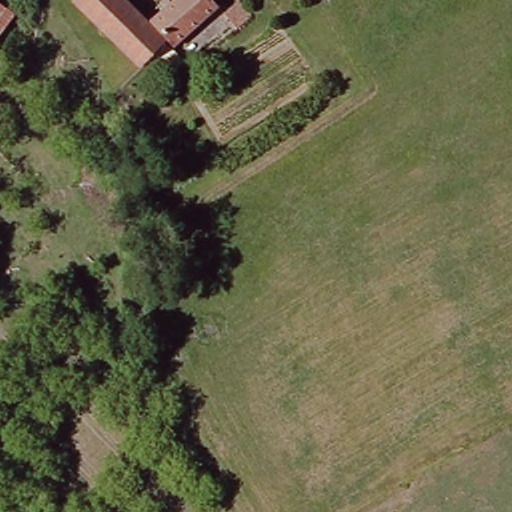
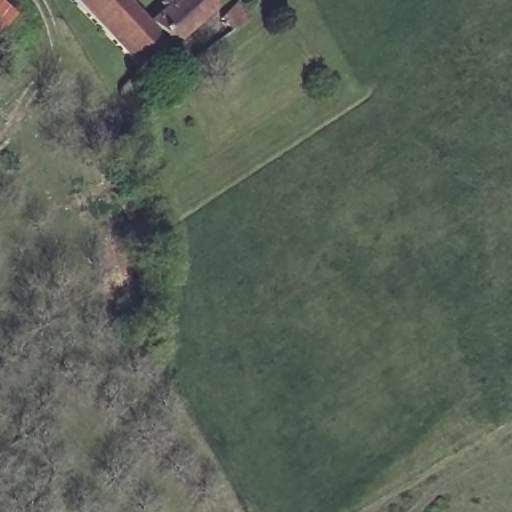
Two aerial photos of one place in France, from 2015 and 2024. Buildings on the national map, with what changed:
unchanged [(72,0),(118,0),(157,40),(135,62),(72,0)]
unchanged [(167,46),(148,21),(173,0),(203,0),(210,10),(167,46)]
unchanged [(215,26),(240,6),(249,18),(223,39),(215,26)]
unchanged [(0,27),(0,11),(7,17),(0,27)]

